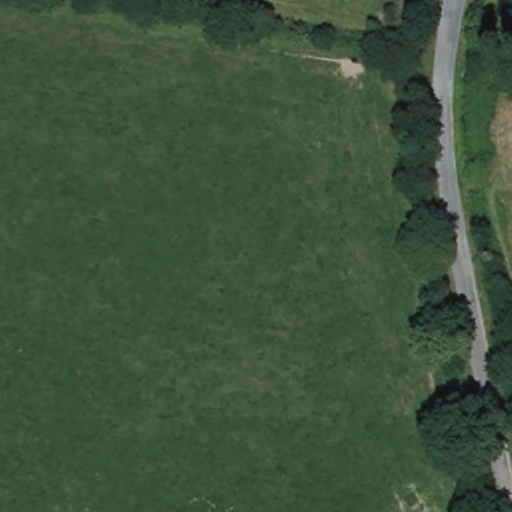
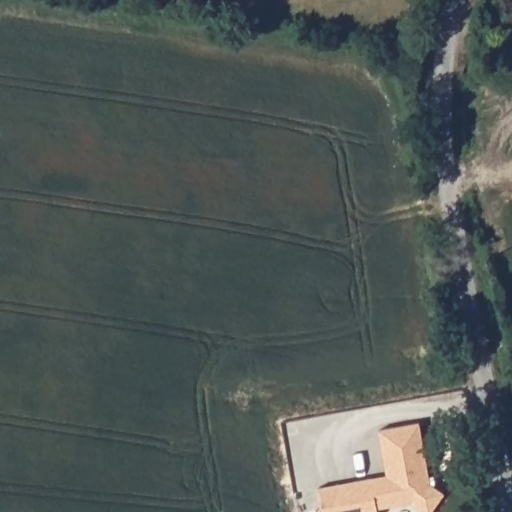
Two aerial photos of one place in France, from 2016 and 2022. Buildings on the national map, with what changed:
new [(386,475),(378,429),(421,422),(433,488),(443,493),(434,512),(432,512),(410,503),(377,508),(378,512),(324,512),(319,487),(386,475)]

